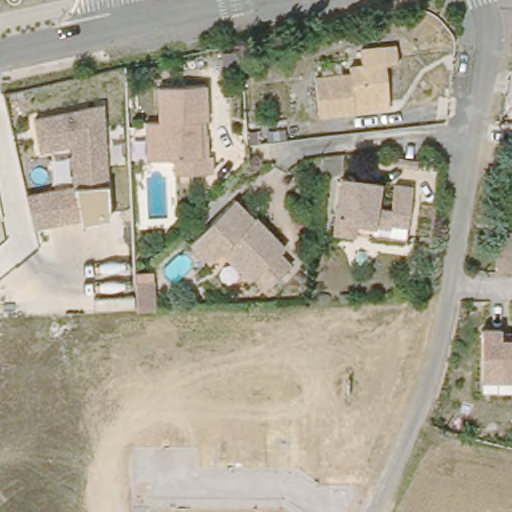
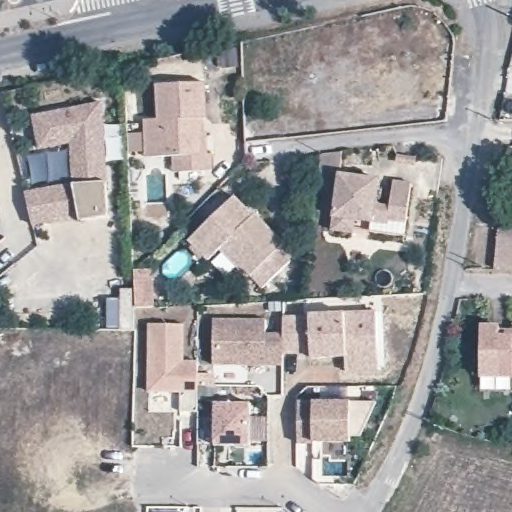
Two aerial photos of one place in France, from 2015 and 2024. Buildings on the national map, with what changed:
unchanged [(355,115),(318,119),(315,80),(348,77),(347,70),(360,69),(359,52),(396,49),(398,66),(385,67),(389,104),(390,112),(355,115)]
unchanged [(147,142),(146,120),(158,119),(157,84),(205,82),(206,120),(207,155),(211,155),(212,172),(175,173),(174,156),(158,157),(147,157),(147,142)]
unchanged [(106,210),(29,225),(26,188),(71,182),(71,146),(39,151),(33,116),(99,104),(106,210)]
unchanged [(344,156),(345,172),(321,175),(323,159),(344,156)]
unchanged [(334,227),(340,179),(362,181),(379,184),(379,189),(377,203),(381,210),(391,211),(395,186),(413,189),(407,227),(390,225),(389,229),(374,227),(357,225),(356,230),(355,237),(333,235),(334,227)]
unchanged [(229,197),(248,216),(250,214),(281,245),(274,251),(286,263),(260,288),(219,246),(205,260),(184,240),(229,197)]
unchanged [(495,270),(495,268),(499,229),(512,229),(512,270),(495,270)]
new [(135,330),(122,330),(123,289),(134,288),(133,270),(153,268),(156,308),(135,310),(135,330)]
new [(347,377),(347,362),(312,361),(313,354),(284,353),(284,336),(284,320),(313,321),(313,319),(379,320),(379,357),(379,377),(347,377)]
new [(214,320),(267,321),(267,336),(284,336),(284,353),(284,366),(214,365),(214,320)]
new [(150,325),(184,325),(183,362),(199,362),(199,412),(181,412),(181,405),(181,392),(149,392),(150,325)]
unchanged [(477,325),(512,326),(512,379),(477,378),(477,325)]
new [(299,401),(377,402),(361,437),(351,437),(351,442),(314,441),(314,443),(298,443),(299,401)]
new [(216,404),(252,405),(252,446),(216,446),(216,404)]

